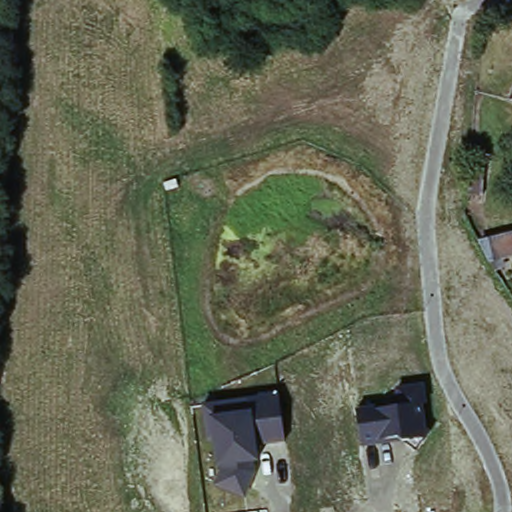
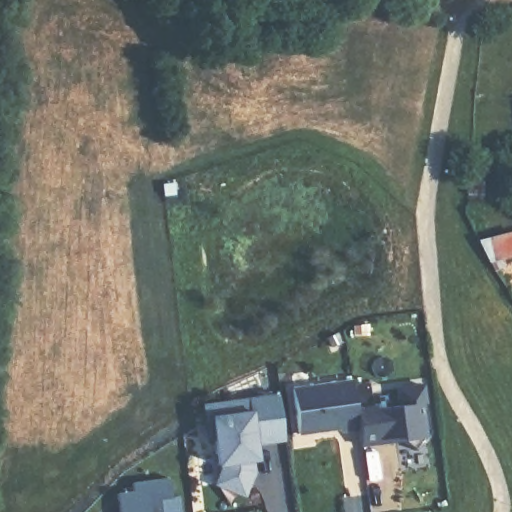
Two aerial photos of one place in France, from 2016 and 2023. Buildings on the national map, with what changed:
unchanged [(483,163),(480,201),(466,200),(467,186),(468,163),(483,163)]
unchanged [(493,266),(492,264),(483,246),(512,239),(512,260),(503,261),(509,271),(499,276),(493,266)]
new [(358,428),(339,430),(339,428),(296,433),(291,388),(351,381),(356,410),(358,428)]
unchanged [(356,410),(396,406),(394,387),(423,385),(429,435),(417,452),(405,441),(360,446),(356,410)]
unchanged [(219,468),(216,440),(207,441),(203,405),(279,391),(283,441),(258,444),(259,461),(243,497),(211,484),(219,468)]
new [(130,491),(129,483),(167,478),(170,497),(176,496),(178,512),(117,512),(114,493),(130,491)]

